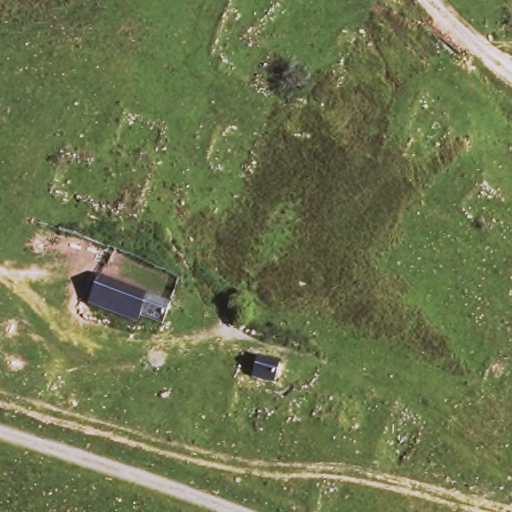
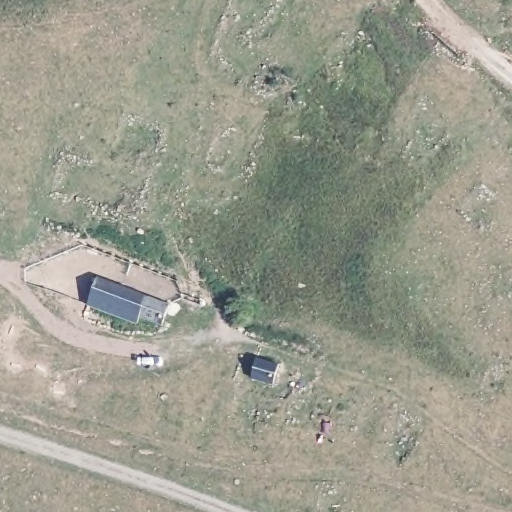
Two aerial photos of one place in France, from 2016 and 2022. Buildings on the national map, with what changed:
unchanged [(87,311),(100,278),(142,293),(177,308),(165,342),(87,311)]
unchanged [(286,363),(280,384),(252,378),(261,357),(286,363)]

